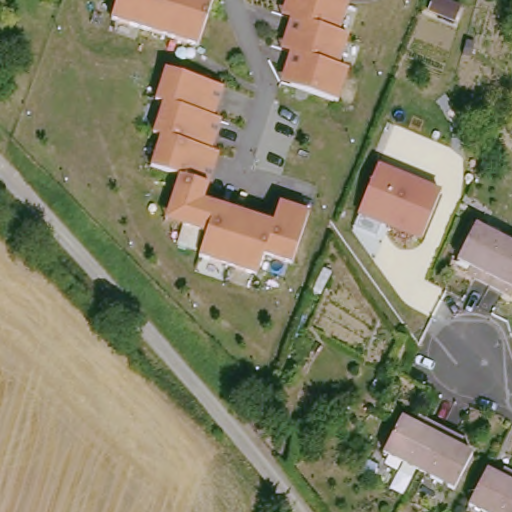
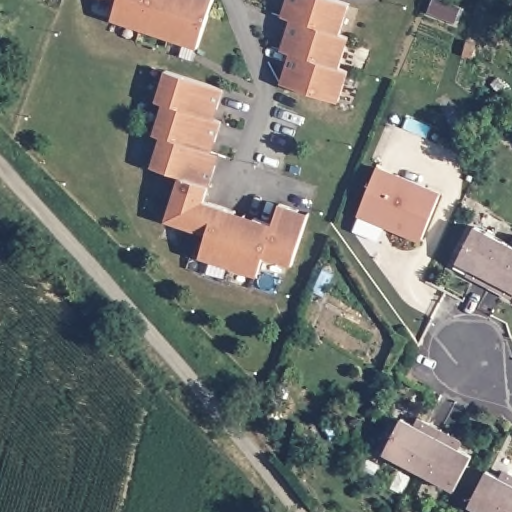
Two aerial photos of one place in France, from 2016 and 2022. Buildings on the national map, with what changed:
unchanged [(114,17),(120,0),(214,0),(200,45),(114,17)]
unchanged [(291,50),(281,47),(292,20),(280,15),(285,0),(349,0),(352,1),(340,34),(352,36),(341,66),(350,70),(340,100),(280,83),(291,50)]
unchanged [(225,88),(213,115),(222,119),(211,150),(220,154),(205,196),(275,219),(282,199),(312,210),(294,260),(266,252),(258,271),(202,253),(208,234),(165,219),(181,175),(152,165),(164,137),(155,131),(166,102),(167,67),(225,88)]
unchanged [(421,239),(358,215),(380,164),(442,190),(421,239)]
unchanged [(490,283),(472,273),(475,266),(458,257),(476,223),(512,242),(490,283)]
unchanged [(506,291),(490,283),(512,242),(512,286),(509,285),(506,291)]
unchanged [(418,471),(380,451),(398,415),(415,425),(420,416),(440,426),(418,471)]
unchanged [(452,490),(418,471),(440,426),(456,435),(451,444),(471,453),(452,490)]
unchanged [(465,501),(482,466),(497,472),(500,465),(512,470),(512,491),(501,512),(486,512),(465,501)]
unchanged [(512,491),(512,512),(501,512),(512,491)]

